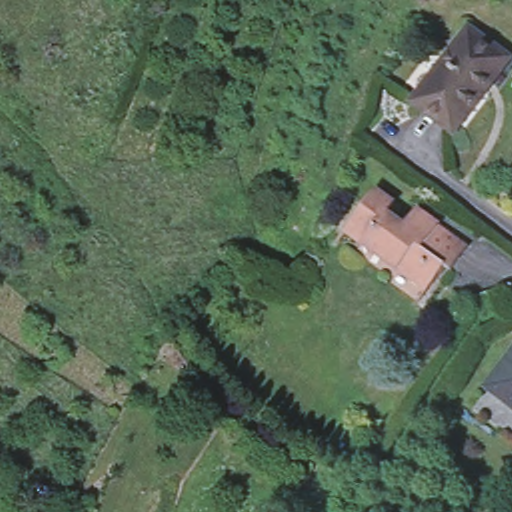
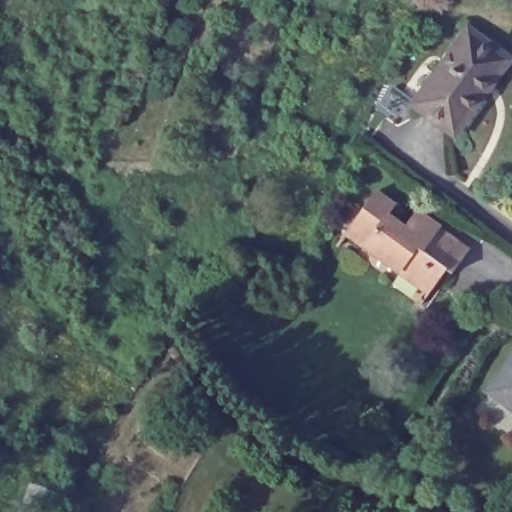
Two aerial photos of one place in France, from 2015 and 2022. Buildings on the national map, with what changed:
unchanged [(512,63),(512,64),(499,83),(490,77),(482,90),(484,92),(454,135),(418,110),(471,34),(512,63)]
unchanged [(447,278),(441,275),(424,298),(392,276),(394,275),(340,236),(367,197),(387,211),(382,220),(398,232),(404,223),(409,216),(422,225),(464,255),(447,278)]
unchanged [(490,388),(512,357),(512,405),(490,388)]
unchanged [(34,512),(39,483),(74,497),(69,512),(34,512)]

